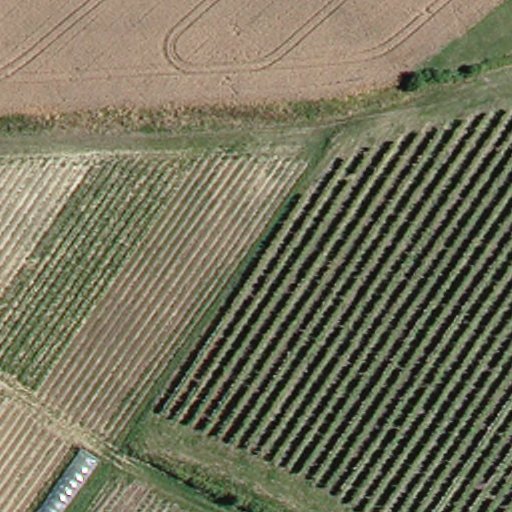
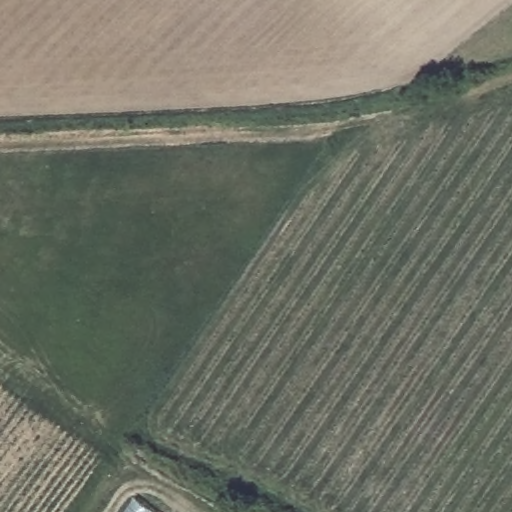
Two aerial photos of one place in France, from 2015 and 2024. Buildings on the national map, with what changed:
new [(154,512),(118,512),(130,494),(154,512)]

